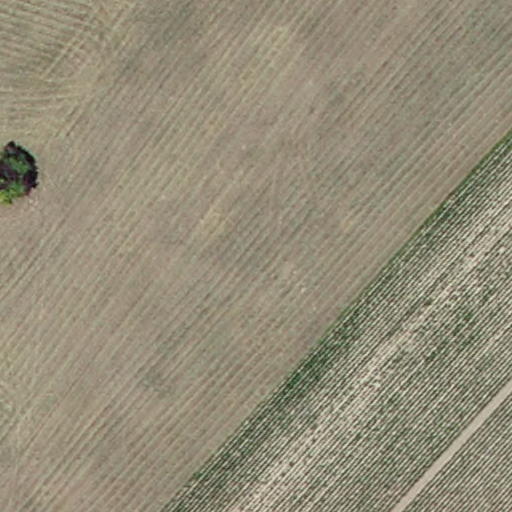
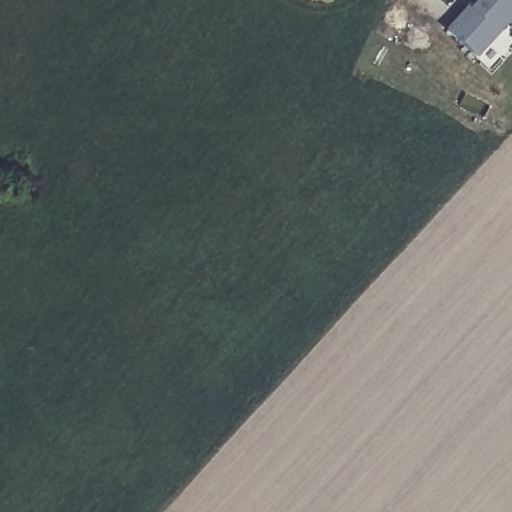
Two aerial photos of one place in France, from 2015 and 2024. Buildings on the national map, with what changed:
new [(476,57),(447,29),(467,5),(470,7),(476,0),(512,0),(512,18),(476,57)]

